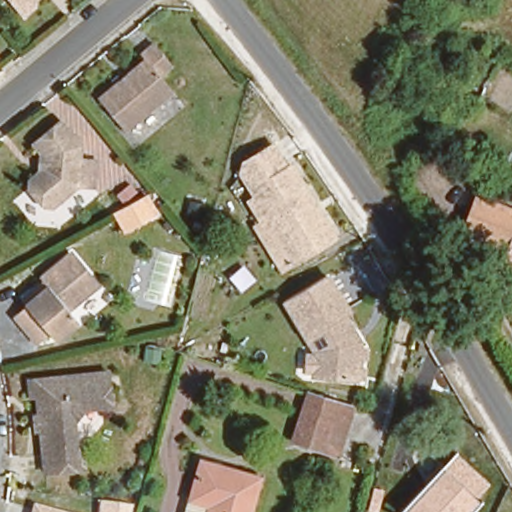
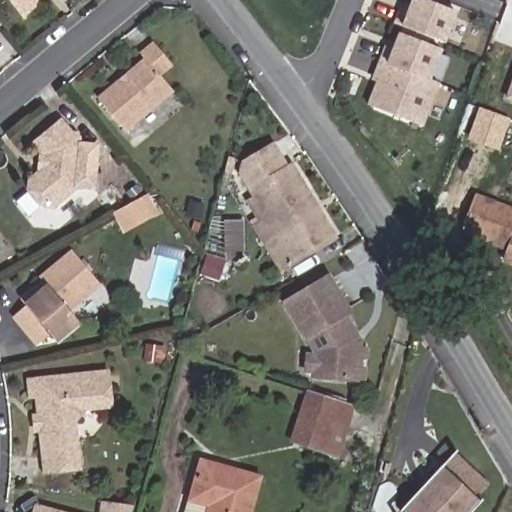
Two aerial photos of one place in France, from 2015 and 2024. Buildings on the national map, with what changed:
unchanged [(14,6),(9,0),(21,0),(14,6)]
new [(430,78),(390,64),(414,0),(424,0),(456,12),(430,78)]
unchanged [(134,60),(146,49),(177,87),(120,136),(95,106),(140,69),(134,60)]
new [(390,64),(430,78),(439,82),(424,125),(368,105),(384,62),(390,64)]
new [(505,100),(512,79),(512,102),(505,100)]
unchanged [(49,172),(52,156),(44,155),(35,143),(60,122),(66,129),(72,126),(81,134),(81,147),(100,154),(94,189),(71,182),(73,190),(51,207),(38,209),(28,196),(25,182),(41,170),(49,172)]
unchanged [(253,225),(260,219),(248,202),(252,197),(242,180),(245,161),(272,147),(286,172),(295,166),(338,241),(285,277),(253,225)]
new [(148,197),(157,216),(126,232),(117,215),(148,197)]
unchanged [(512,212),(512,267),(505,265),(510,252),(460,234),(475,199),(512,212)]
unchanged [(98,276),(72,300),(80,310),(58,330),(53,326),(45,331),(21,304),(33,294),(26,286),(48,267),(71,246),(98,276)]
unchanged [(307,377),(306,347),(283,303),(328,272),(360,320),(356,323),(373,352),(366,383),(307,377)]
unchanged [(114,395),(88,400),(77,412),(83,460),(49,465),(40,391),(31,391),(30,376),(110,363),(114,395)]
unchanged [(304,413),(308,399),(332,403),(339,405),(324,452),(293,447),(304,413)]
unchanged [(402,512),(401,511),(461,451),(500,490),(480,512),(402,512)]
unchanged [(255,512),(205,512),(206,509),(185,502),(197,462),(198,462),(265,481),(255,512)]
unchanged [(33,512),(36,501),(78,512),(33,512)]

